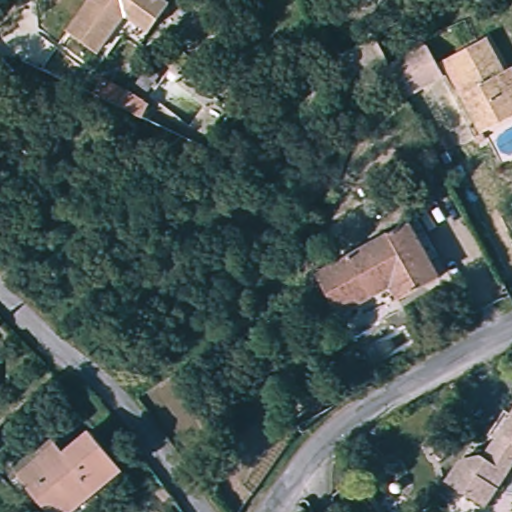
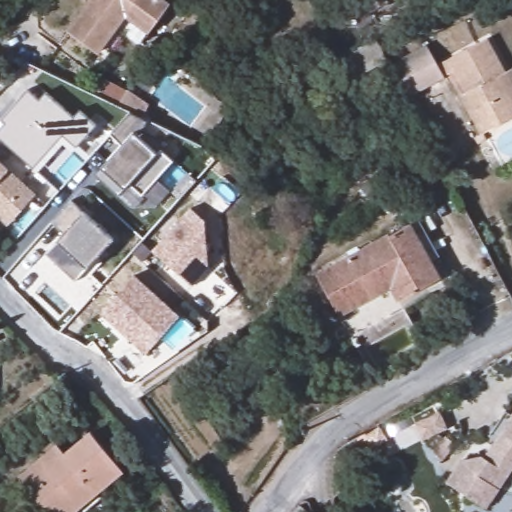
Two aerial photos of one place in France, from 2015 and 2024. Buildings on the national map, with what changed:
unchanged [(150,30),(127,14),(98,52),(70,31),(93,0),(165,0),(170,4),(150,30)]
unchanged [(391,67),(427,46),(437,64),(489,39),(507,72),(512,69),(512,117),(480,135),(460,97),(465,94),(453,70),(406,95),(391,67)]
unchanged [(379,43),(387,59),(348,79),(342,54),(379,43)]
new [(28,91),(39,100),(46,94),(74,118),(80,111),(96,126),(73,152),(64,144),(38,173),(0,139),(0,129),(5,124),(0,120),(0,115),(14,99),(18,101),(28,91)]
new [(148,120),(141,138),(157,154),(161,150),(173,160),(142,195),(130,184),(126,189),(118,198),(95,177),(103,169),(102,168),(121,146),(110,135),(131,113),(148,120)]
new [(36,195),(8,227),(0,219),(0,162),(8,169),(36,195)]
new [(83,211),(114,239),(87,269),(57,241),(63,234),(52,222),(72,200),(83,211)]
new [(205,222),(209,270),(193,287),(152,252),(191,209),(205,222)]
unchanged [(440,257),(430,263),(439,279),(399,302),(389,284),(338,312),(318,275),(420,219),(440,257)]
new [(180,315),(146,355),(100,314),(134,275),(180,315)]
unchanged [(454,482),(467,462),(491,458),(507,434),(499,429),(510,410),(512,411),(512,512),(490,512),(454,482)]
unchanged [(75,512),(49,512),(19,476),(57,444),(65,453),(91,432),(125,472),(75,512)]
unchanged [(174,499),(173,499),(163,507),(157,498),(167,491),(174,499)]
unchanged [(303,512),(299,512),(301,510),(303,512)]

